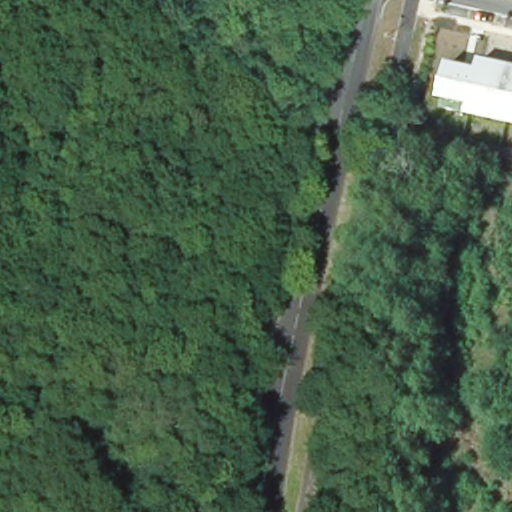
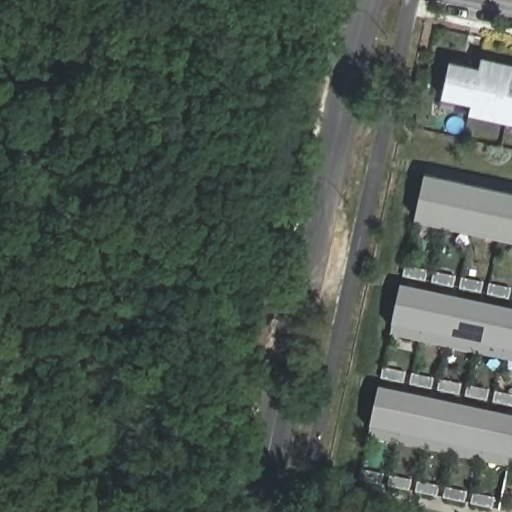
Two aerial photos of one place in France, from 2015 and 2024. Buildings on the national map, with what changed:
unchanged [(472,105),(443,97),(450,62),(481,68),(483,57),(512,64),(512,123),(470,114),(472,105)]
new [(416,217),(425,175),(512,193),(512,243),(415,222),(416,217)]
new [(392,328),(400,288),(512,312),(512,363),(391,336),(392,328)]
new [(369,437),(370,429),(379,388),(512,417),(512,460),(509,468),(369,437)]

